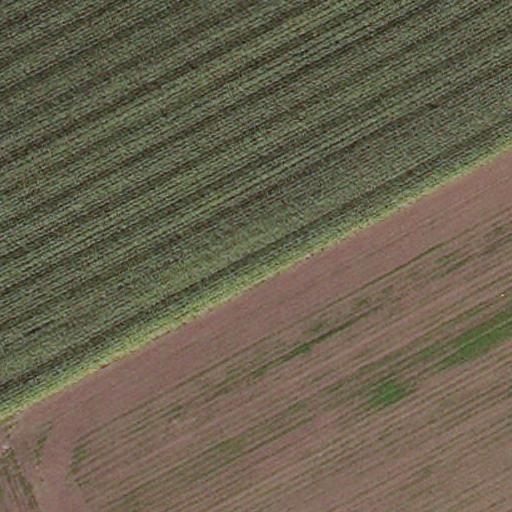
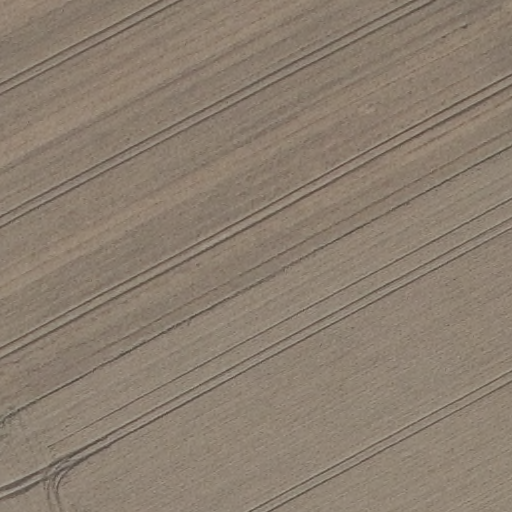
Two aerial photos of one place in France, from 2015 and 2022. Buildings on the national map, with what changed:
[]

